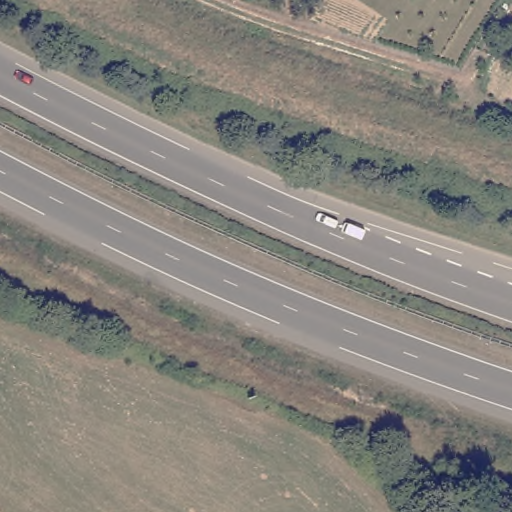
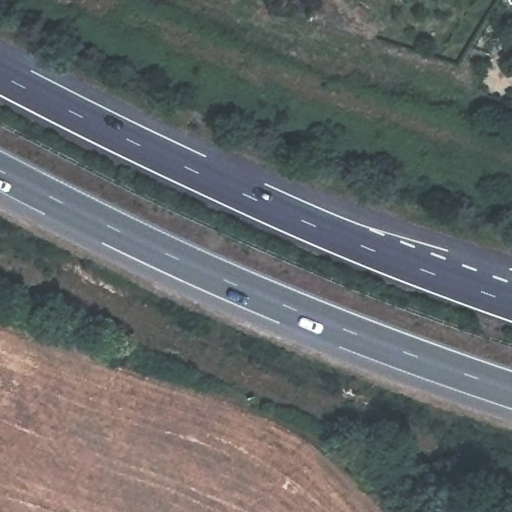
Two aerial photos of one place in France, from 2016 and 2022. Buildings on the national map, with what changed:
unchanged [(497,7),(502,0),(509,0),(512,2),(505,11),(497,7)]

